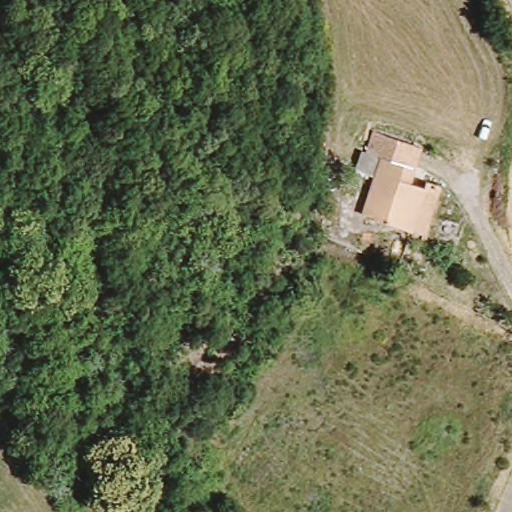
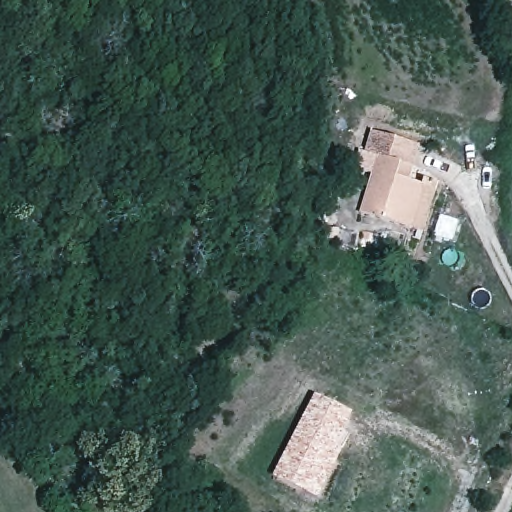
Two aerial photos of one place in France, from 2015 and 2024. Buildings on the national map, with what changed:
unchanged [(419,148),(410,182),(424,187),(427,181),(438,186),(425,232),(414,230),(410,232),(365,217),(375,184),(359,177),(364,158),(369,161),(377,137),(419,148)]
new [(338,447),(346,452),(318,501),(274,478),(316,395),(354,416),(338,447)]

